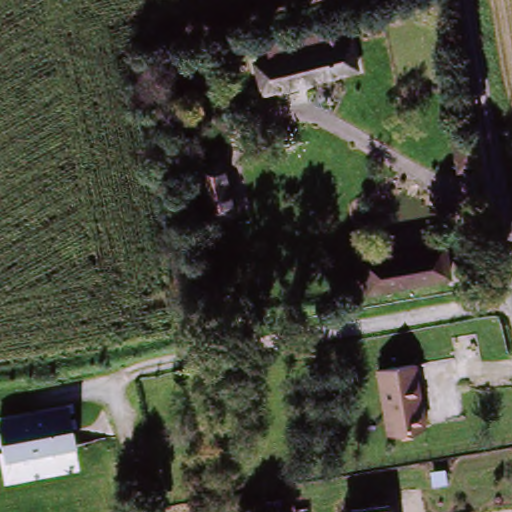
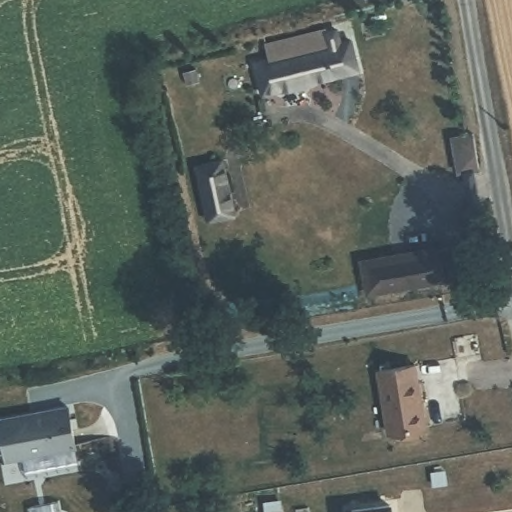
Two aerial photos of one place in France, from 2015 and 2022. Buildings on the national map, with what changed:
unchanged [(274,35),(327,23),(331,45),(279,56),(274,35)]
unchanged [(265,59),(279,56),(331,45),(342,43),(359,40),(365,72),(349,75),(272,91),(265,59)]
unchanged [(450,162),(445,133),(467,129),(472,158),(450,162)]
unchanged [(197,222),(188,174),(186,165),(218,160),(220,168),(229,217),(197,222)]
unchanged [(450,250),(455,281),(335,302),(329,271),(450,250)]
unchanged [(436,428),(399,435),(387,367),(424,361),(436,428)]
unchanged [(72,408),(79,445),(10,460),(2,423),(72,408)]
unchanged [(286,512),(270,512),(269,504),(284,502),(286,512)]
unchanged [(375,512),(372,512),(375,511),(375,512)]

